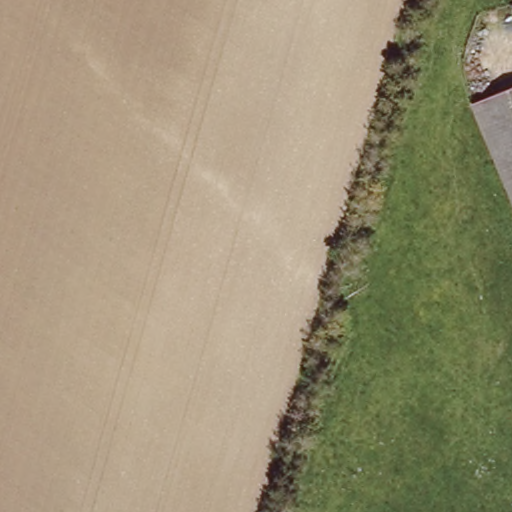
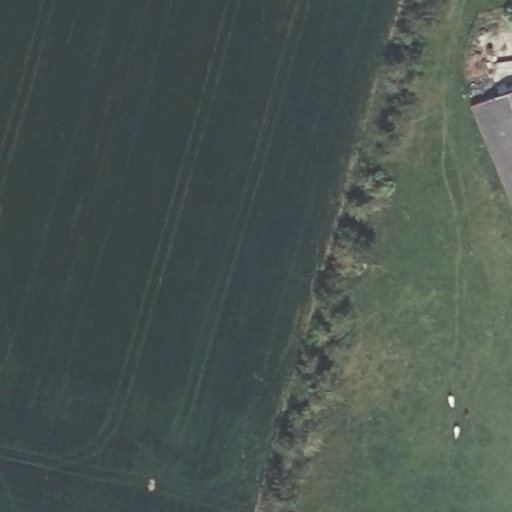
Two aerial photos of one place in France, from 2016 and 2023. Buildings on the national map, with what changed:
unchanged [(512,89),(512,185),(480,102),(512,89)]

